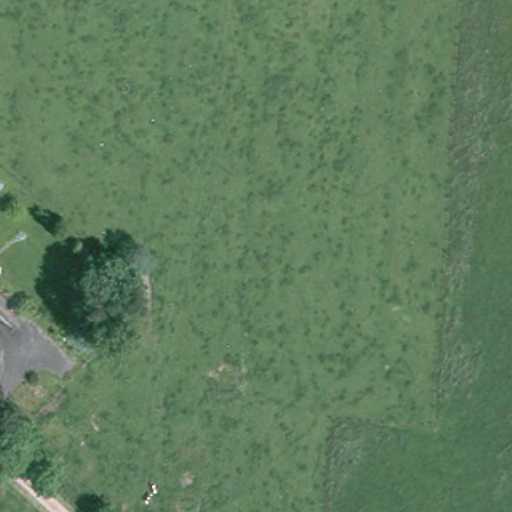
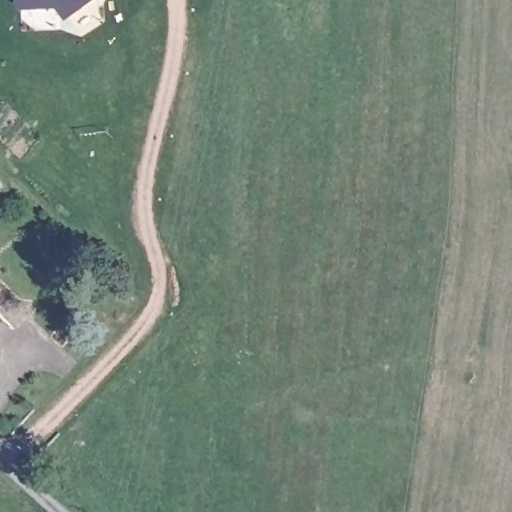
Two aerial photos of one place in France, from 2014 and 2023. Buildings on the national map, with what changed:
new [(99,1),(66,24),(59,10),(20,12),(20,0),(99,0),(99,1)]

